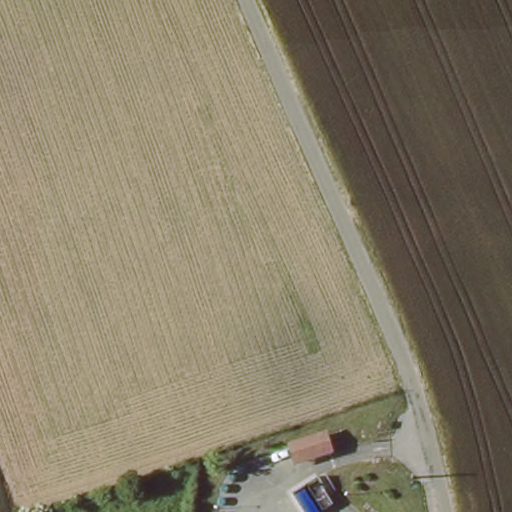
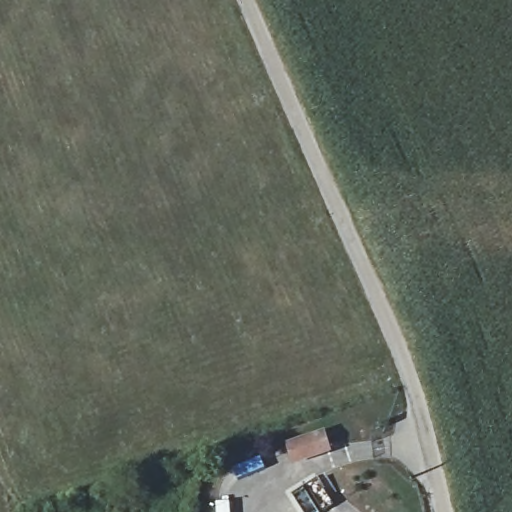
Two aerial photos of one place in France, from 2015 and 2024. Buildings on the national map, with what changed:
unchanged [(337,452),(294,466),(287,446),(328,432),(337,452)]

